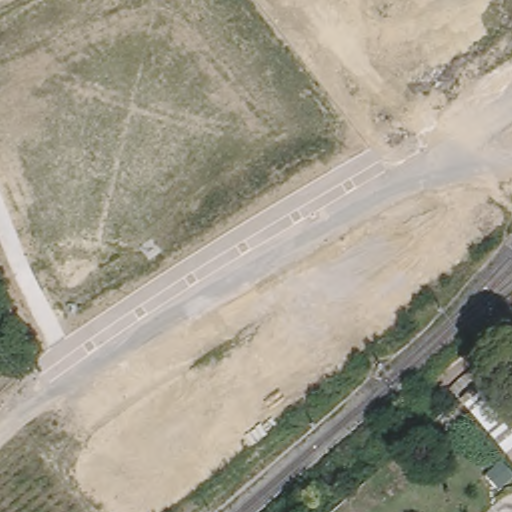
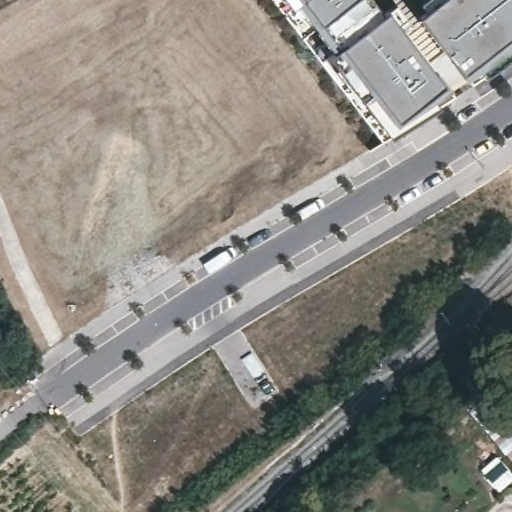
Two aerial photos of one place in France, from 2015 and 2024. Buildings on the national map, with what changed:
new [(392,135),(387,129),(382,140),(275,0),(374,0),(384,13),(392,9),(450,82),(456,91),(437,102),(440,107),(392,135)]
new [(422,1),(422,0),(512,0),(512,54),(487,72),(475,78),(470,72),(465,76),(418,17),(427,10),(422,1)]
unchanged [(507,450),(512,448),(512,455),(507,450)]

